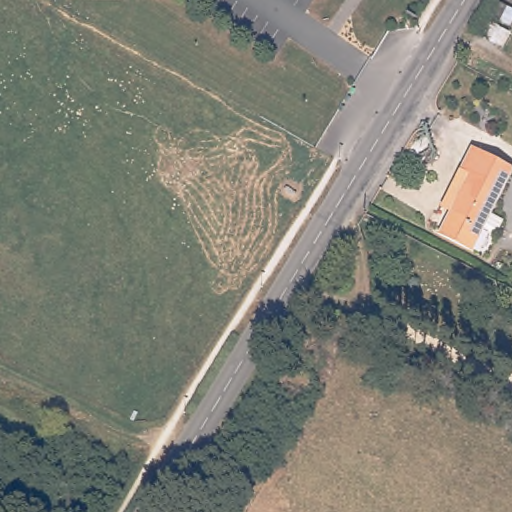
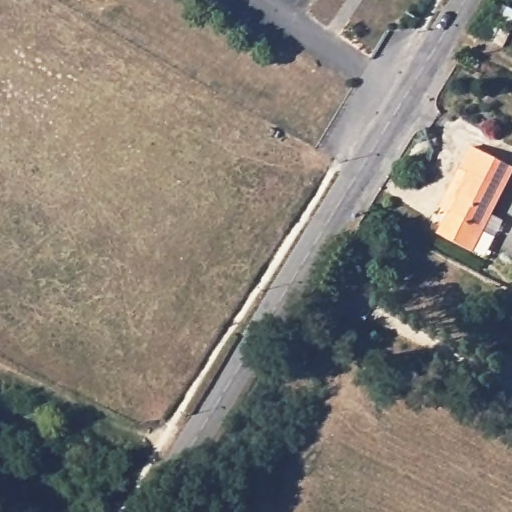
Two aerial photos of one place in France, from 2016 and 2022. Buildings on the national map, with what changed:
unchanged [(463,176),(457,171),(471,146),(512,168),(512,180),(476,251),(435,231),(463,176)]

